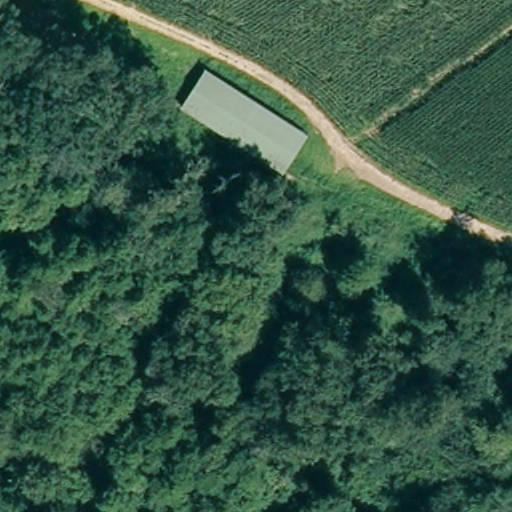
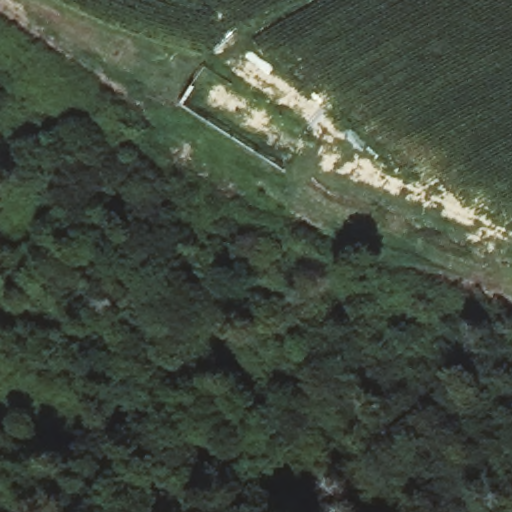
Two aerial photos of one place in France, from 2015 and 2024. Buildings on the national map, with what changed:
new [(182,106),(206,67),(310,134),(285,171),(182,106)]

